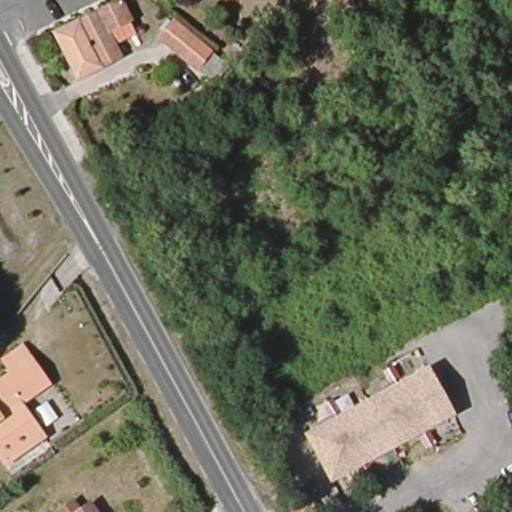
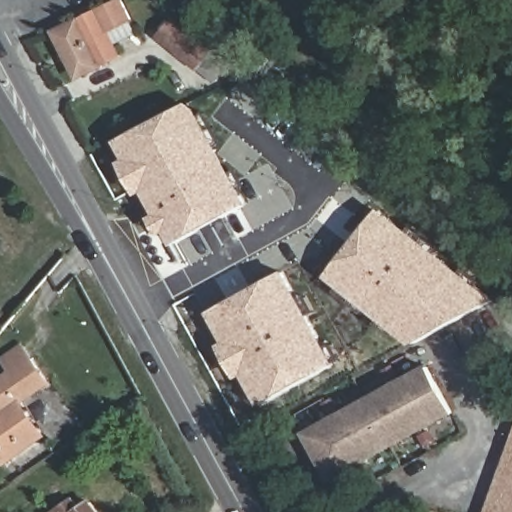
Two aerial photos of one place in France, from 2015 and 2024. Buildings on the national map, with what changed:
unchanged [(107,33),(120,57),(77,80),(50,31),(116,0),(121,0),(131,20),(107,33)]
unchanged [(224,67),(212,80),(158,36),(169,23),(224,67)]
new [(125,158),(116,141),(190,102),(197,108),(252,205),(173,247),(166,232),(159,234),(150,218),(155,214),(144,190),(137,194),(120,161),(125,158)]
new [(381,209),(497,300),(413,345),(326,277),(381,209)]
new [(260,406),(242,375),(239,378),(220,344),(225,343),(209,313),(285,272),(335,363),(260,406)]
unchanged [(42,440),(6,466),(0,457),(0,381),(14,372),(4,357),(20,346),(30,361),(44,382),(15,401),(42,440)]
unchanged [(428,362),(455,414),(330,483),(302,432),(428,362)]
new [(512,435),(512,512),(484,512),(512,435)]
new [(307,499),(314,512),(286,512),(285,512),(307,499)]
unchanged [(90,502),(97,512),(76,512),(90,502)]
unchanged [(71,503),(76,512),(56,512),(71,503)]

